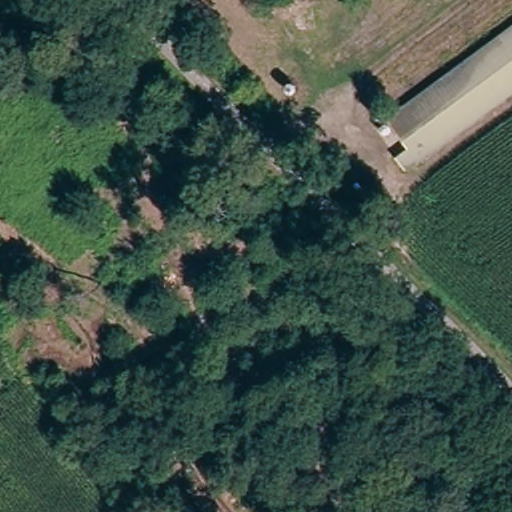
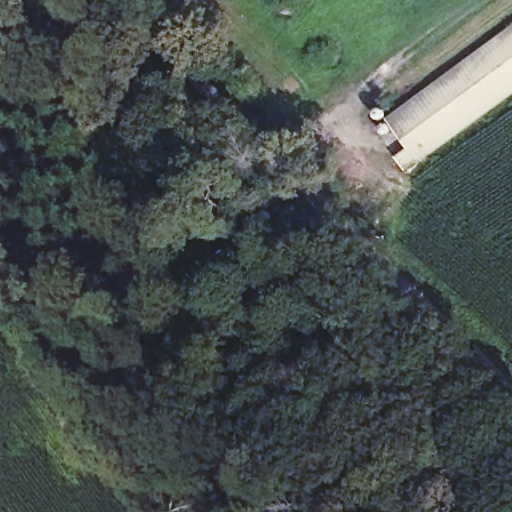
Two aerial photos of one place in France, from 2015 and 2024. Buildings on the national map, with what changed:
unchanged [(512,94),(410,181),(399,168),(409,158),(389,136),(497,40),(512,28),(512,94)]

